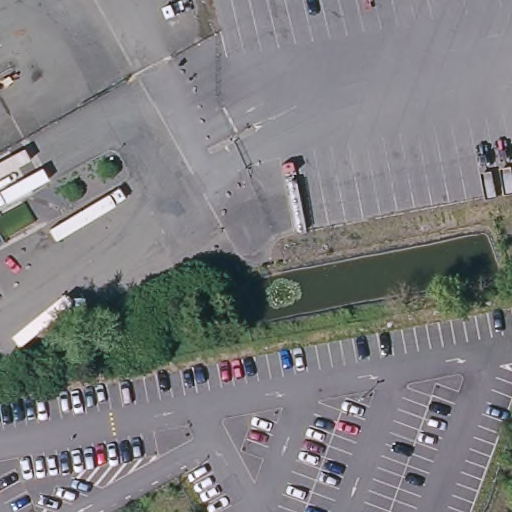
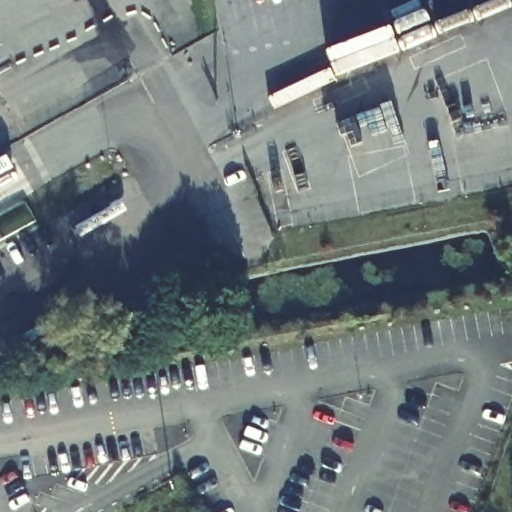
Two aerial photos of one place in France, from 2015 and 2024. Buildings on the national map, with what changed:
unchanged [(27,195),(0,211),(0,152),(2,151),(27,195)]

